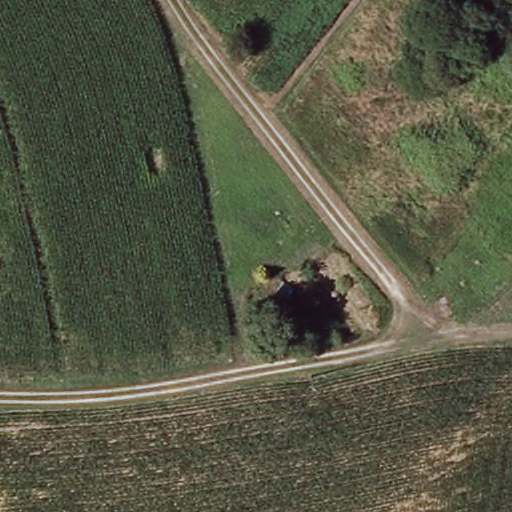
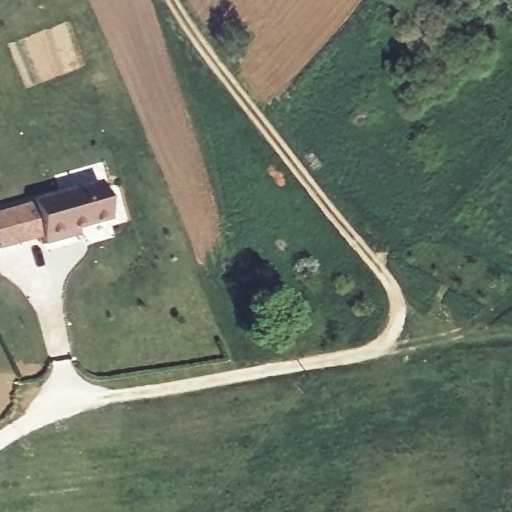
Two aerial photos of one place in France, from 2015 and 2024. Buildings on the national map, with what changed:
new [(36,202),(36,200),(103,186),(111,224),(65,234),(66,239),(45,244),(43,237),(22,241),(15,207),(36,202)]

